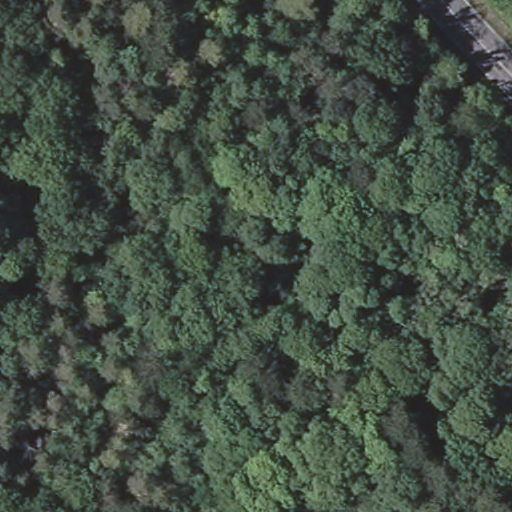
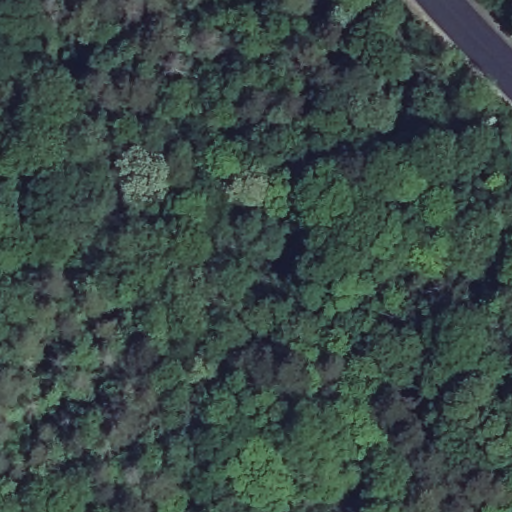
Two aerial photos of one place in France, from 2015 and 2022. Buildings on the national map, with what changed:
unchanged [(55,186),(52,199),(0,159),(0,143),(55,186)]

